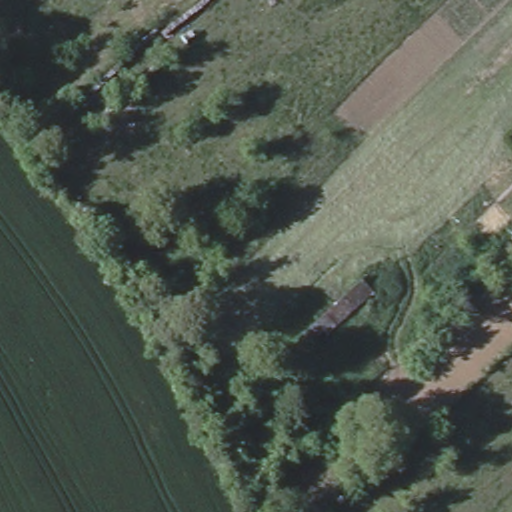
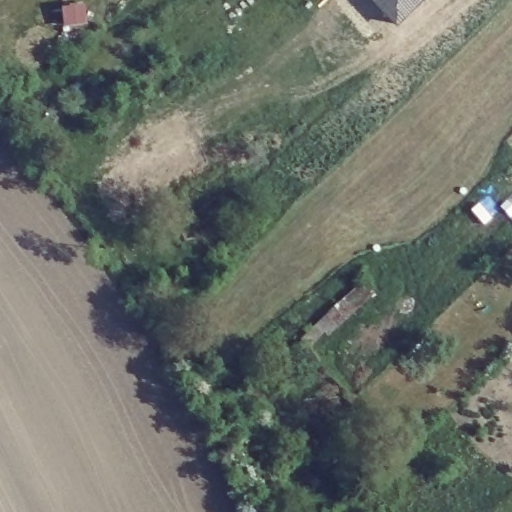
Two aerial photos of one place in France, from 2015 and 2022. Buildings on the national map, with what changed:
new [(372,0),(424,0),(398,25),(372,0)]

